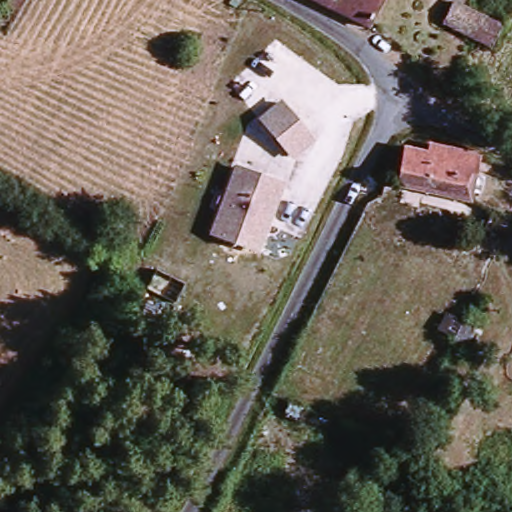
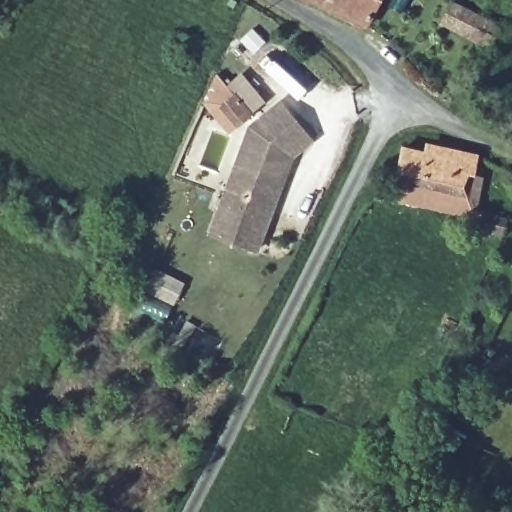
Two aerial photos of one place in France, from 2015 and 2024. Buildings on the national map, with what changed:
unchanged [(323,0),(386,0),(372,26),(323,0)]
unchanged [(456,3),(505,23),(496,43),(448,22),(456,3)]
new [(226,84),(240,72),(265,102),(253,114),(229,134),(198,101),(215,73),(226,84)]
unchanged [(282,98),(314,143),(291,156),(260,113),(282,98)]
unchanged [(235,164),(250,124),(260,113),(291,156),(285,180),(235,164)]
unchanged [(436,141),(483,157),(471,196),(399,179),(408,144),(435,149),(436,141)]
unchanged [(285,180),(260,255),(207,236),(235,164),(285,180)]
unchanged [(510,216),(503,234),(483,227),(487,210),(510,216)]
unchanged [(481,325),(474,344),(434,331),(444,312),(481,325)]

